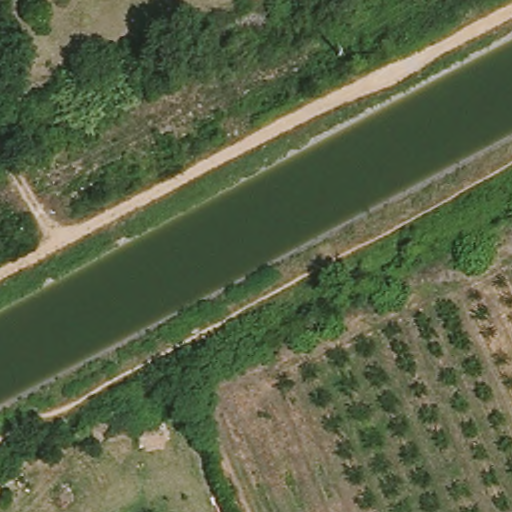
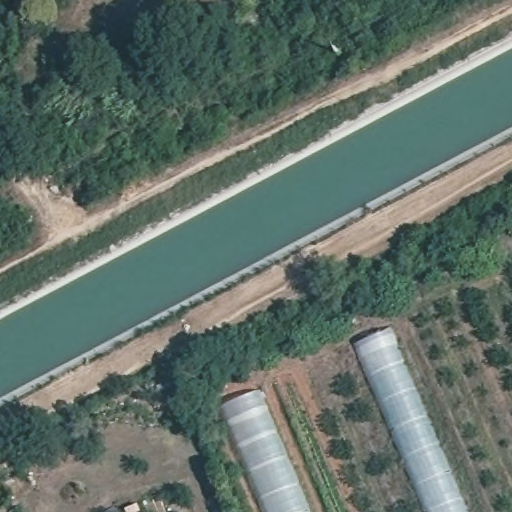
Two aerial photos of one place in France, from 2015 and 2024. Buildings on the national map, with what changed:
new [(357,345),(390,330),(466,512),(426,512),(357,345)]
new [(309,512),(260,512),(217,410),(258,392),(309,512)]

